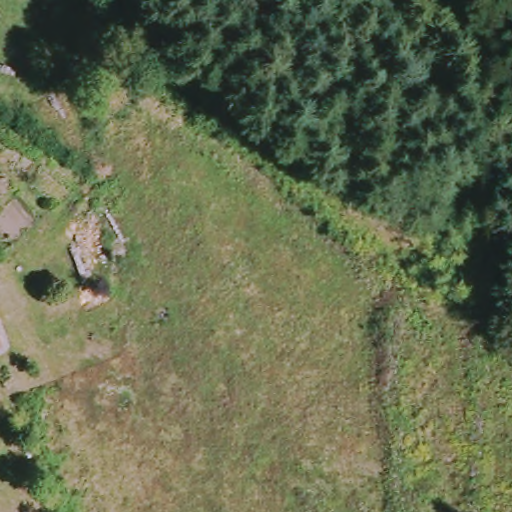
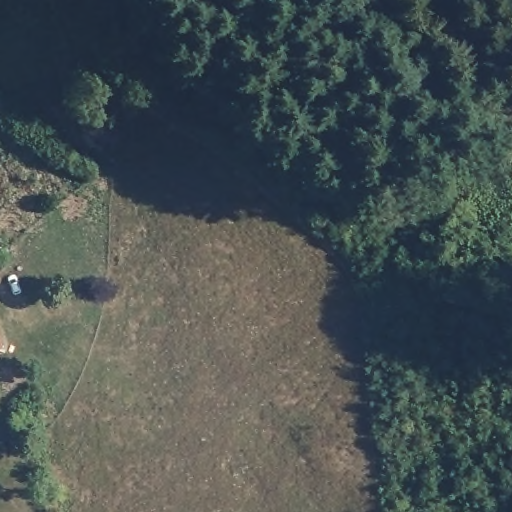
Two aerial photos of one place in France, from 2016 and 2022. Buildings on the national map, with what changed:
unchanged [(0,349),(0,320),(8,347),(0,349)]

